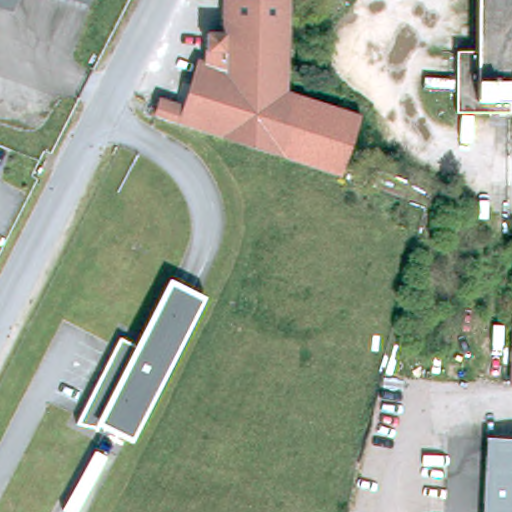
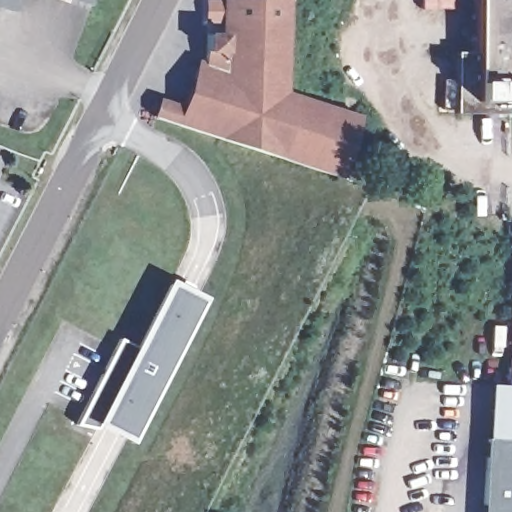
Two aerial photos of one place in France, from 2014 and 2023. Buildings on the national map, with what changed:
unchanged [(11,2),(5,0),(15,0),(11,2)]
unchanged [(289,153),(289,156),(272,150),(225,134),(219,133),(202,127),(183,120),(161,113),(165,98),(188,106),(203,58),(209,62),(210,27),(227,27),(228,0),(292,0),(289,153)]
unchanged [(472,102),(472,53),(472,0),(512,0),(512,102),(507,102),(472,102)]
unchanged [(472,102),(507,102),(506,115),(452,113),(452,53),(472,53),(472,102)]
unchanged [(361,115),(341,174),(289,156),(289,153),(291,93),(361,115)]
unchanged [(512,277),(512,391),(506,391),(512,277)]
unchanged [(208,307),(136,445),(104,428),(101,434),(79,429),(124,344),(143,353),(176,290),(208,307)]
new [(506,391),(512,391),(512,439),(486,439),(490,383),(507,384),(506,391)]
unchanged [(512,439),(512,512),(482,512),(486,439),(512,439)]

